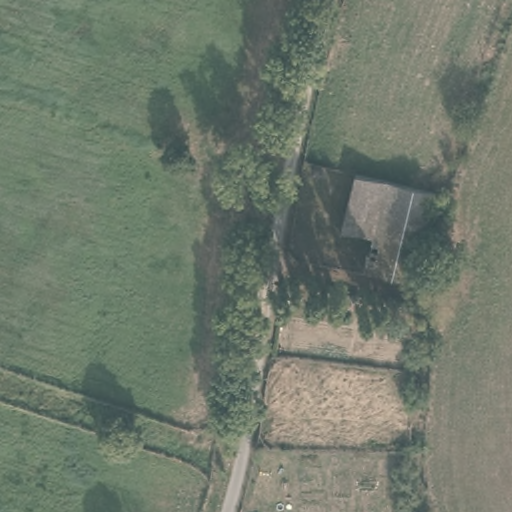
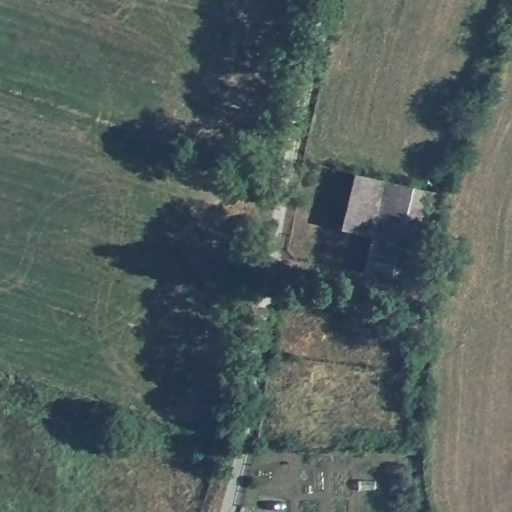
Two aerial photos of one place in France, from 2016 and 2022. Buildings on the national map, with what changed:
unchanged [(438,193),(417,282),(365,269),(373,235),(342,228),(355,173),(438,193)]
unchanged [(361,295),(358,307),(346,304),(348,292),(361,295)]

